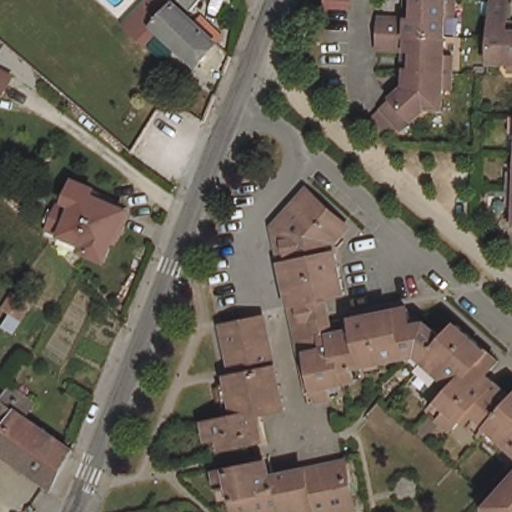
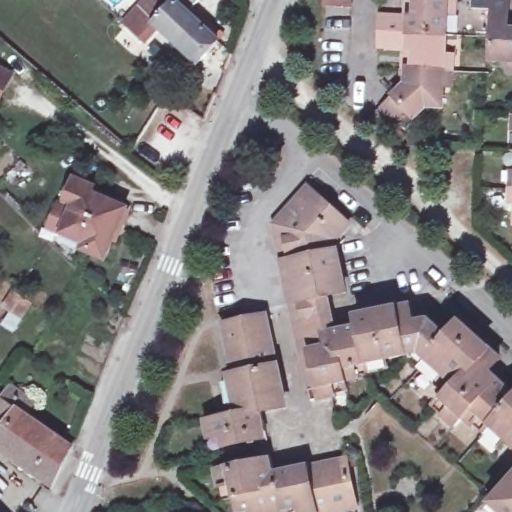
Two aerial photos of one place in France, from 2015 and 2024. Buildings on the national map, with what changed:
unchanged [(148,47),(131,31),(158,0),(178,0),(226,44),(201,70),(163,32),(148,47)]
unchanged [(187,0),(208,0),(198,11),(187,0)]
unchanged [(384,10),(386,10),(414,10),(415,0),(455,0),(454,29),(386,25),(384,10)]
unchanged [(492,40),(492,1),(492,0),(509,0),(509,29),(512,29),(512,67),(493,66),(492,40)]
unchanged [(454,29),(452,64),(415,63),(413,63),(414,43),(386,40),(385,40),(386,25),(454,29)]
unchanged [(415,63),(452,64),(452,102),(436,101),(412,128),(388,105),(388,104),(398,92),(413,76),(413,63),(415,63)]
unchanged [(10,75),(2,91),(0,96),(0,70),(10,75)]
unchanged [(378,394),(354,399),(357,418),(334,422),(288,210),(316,179),(358,215),(341,235),(353,292),(336,293),(341,325),(416,310),(420,329),(432,317),(454,337),(466,325),(506,361),(496,373),(512,388),(512,429),(494,414),(487,423),(476,416),(468,425),(458,416),(465,407),(455,396),(463,384),(438,361),(374,375),(378,394)]
unchanged [(107,260),(82,251),(84,245),(63,237),(79,189),(109,200),(125,206),(107,260)]
unchanged [(239,418),(229,375),(236,373),(226,325),(266,315),(287,410),(258,418),(263,444),(228,455),(224,440),(211,444),(208,426),(239,418)]
unchanged [(81,448),(61,482),(54,477),(12,447),(0,461),(0,394),(8,379),(26,389),(18,407),(26,412),(81,448)]
unchanged [(229,481),(276,471),(281,482),(354,465),(363,512),(306,512),(250,512),(244,495),(233,496),(229,481)]
unchanged [(512,491),(512,512),(505,512),(499,505),(512,491)]

